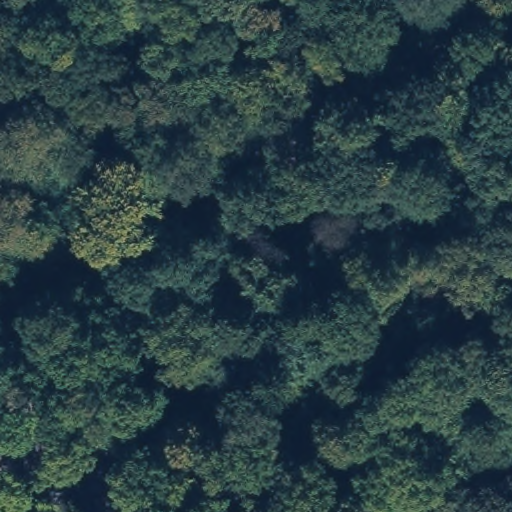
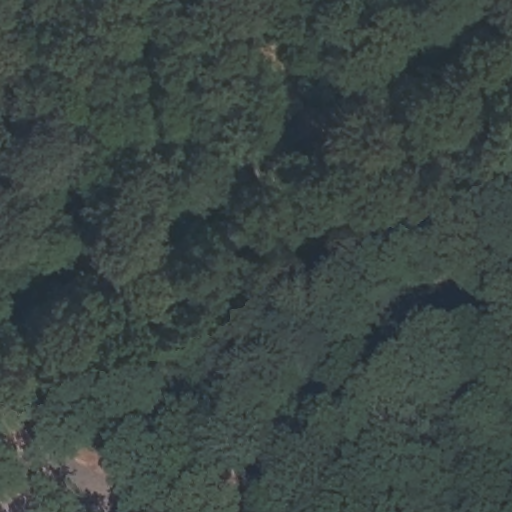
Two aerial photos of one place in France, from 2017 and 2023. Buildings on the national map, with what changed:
unchanged [(0,450),(0,446),(2,448),(0,450)]

